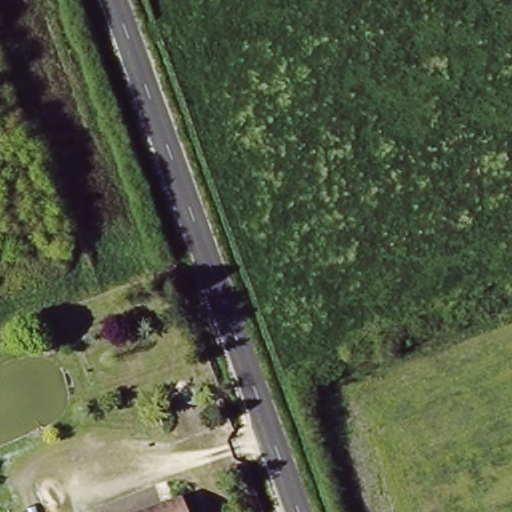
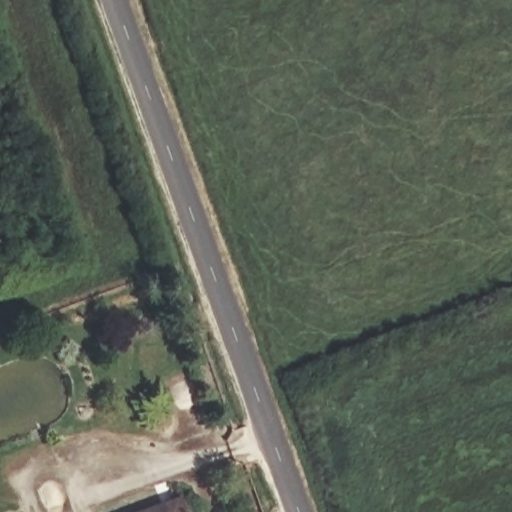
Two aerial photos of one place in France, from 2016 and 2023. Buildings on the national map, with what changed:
unchanged [(183,493),(189,512),(136,512),(183,493)]

